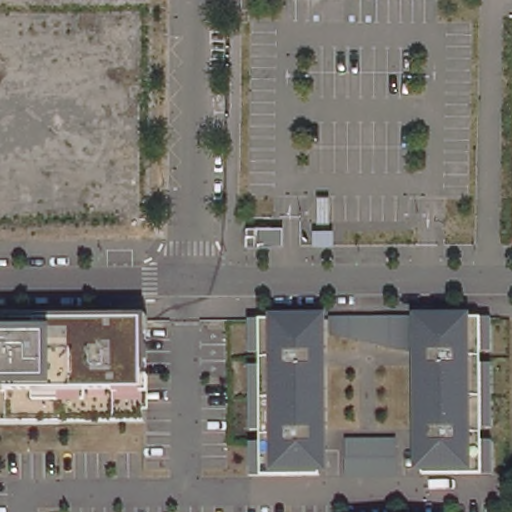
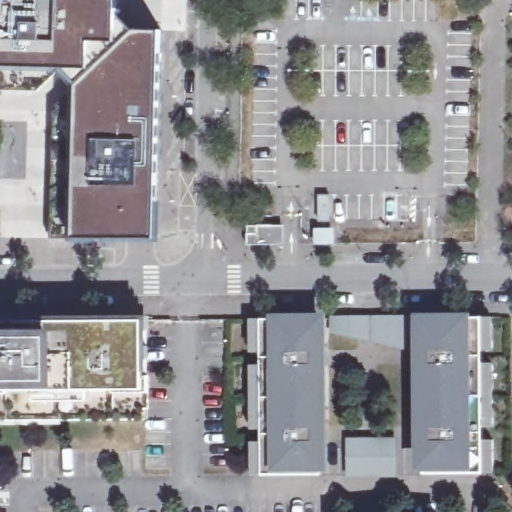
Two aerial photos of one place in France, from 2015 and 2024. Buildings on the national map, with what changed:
new [(120,14),(135,31),(158,32),(155,238),(76,237),(52,239),(55,107),(75,82),(57,67),(37,90),(0,89),(0,0),(120,0),(120,14)]
unchanged [(283,244),(273,244),(273,245),(248,245),(248,232),(248,225),(258,225),(283,225),(283,244)]
unchanged [(336,228),(336,244),(316,245),(316,244),(316,229),(336,228)]
unchanged [(404,322),(405,352),(372,345),(355,342),(330,336),(330,323),(345,323),(355,323),(372,322),(395,322),(404,322)]
unchanged [(478,432),(478,445),(480,445),(488,445),(489,445),(489,446),(490,477),(420,478),(420,453),(419,368),(419,322),(477,322),(488,322),(488,355),(477,355),(477,368),(488,368),(489,400),(490,432),(478,432)]
unchanged [(256,355),(255,324),(266,323),(325,323),(325,355),(325,370),(326,433),(326,446),(326,469),(326,479),(260,479),(257,480),(256,447),(268,447),(267,433),(256,433),(256,402),(256,370),(267,370),(267,355),(256,355)]
unchanged [(160,325),(161,423),(0,425),(0,326),(160,325)]
unchanged [(350,460),(350,441),(395,441),(395,452),(396,473),(350,473),(350,460)]

